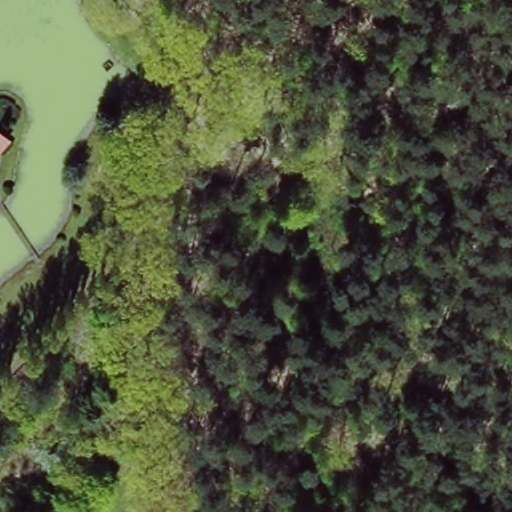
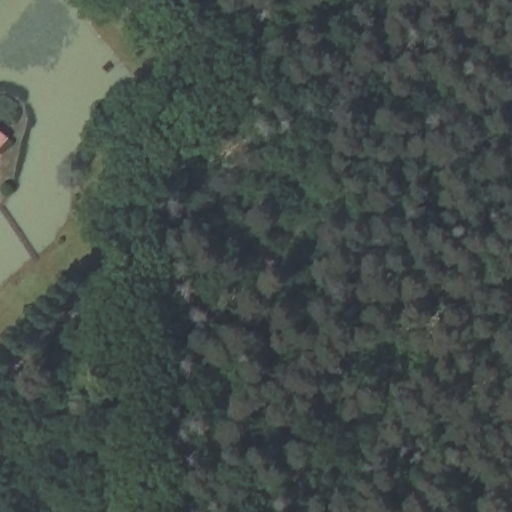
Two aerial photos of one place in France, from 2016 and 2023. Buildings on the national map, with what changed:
unchanged [(0,149),(0,133),(8,140),(0,149)]

